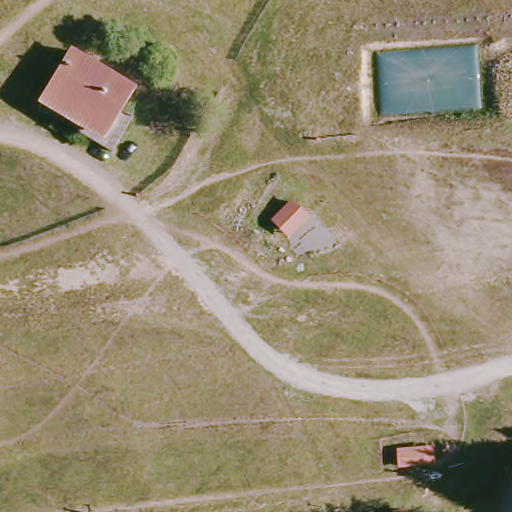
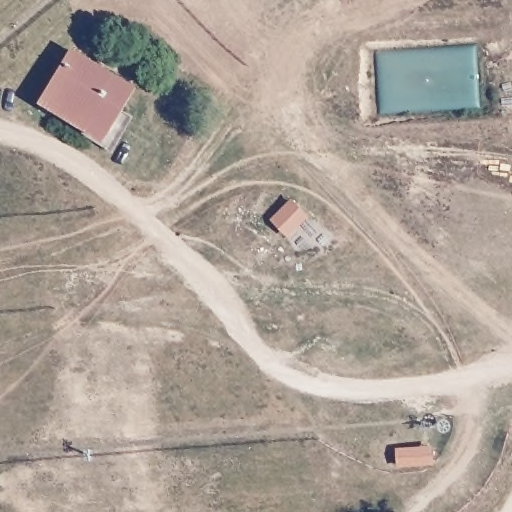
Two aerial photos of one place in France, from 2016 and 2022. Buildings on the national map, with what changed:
unchanged [(71,43),(132,81),(120,100),(133,111),(112,146),(104,159),(38,103),(71,43)]
unchanged [(391,466),(390,443),(429,439),(431,463),(391,466)]

